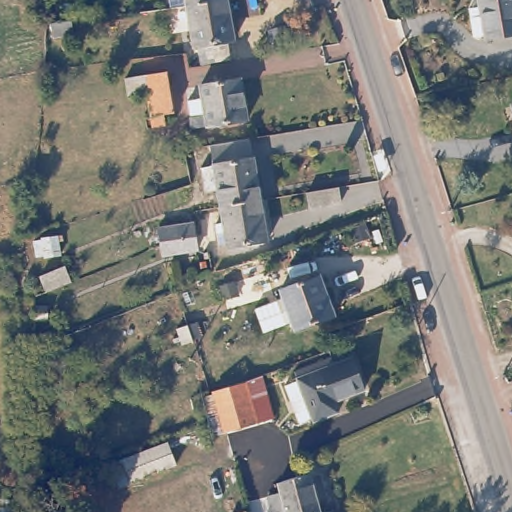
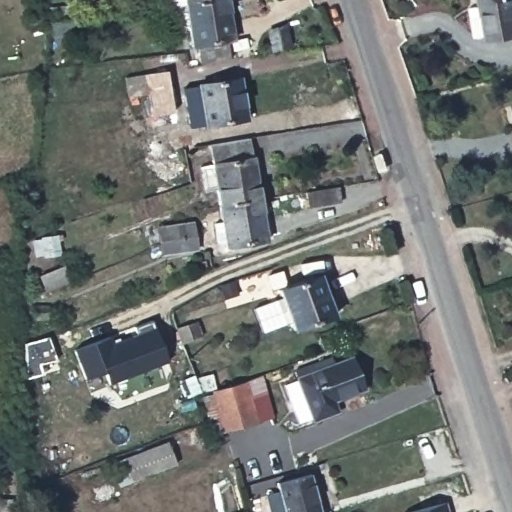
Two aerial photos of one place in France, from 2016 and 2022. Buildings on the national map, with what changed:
unchanged [(204,0),(184,3),(184,0),(204,0)]
unchanged [(192,47),(184,3),(204,0),(227,0),(234,39),(192,47)]
unchanged [(491,39),(491,35),(479,39),(473,10),(487,8),(486,3),(482,4),(482,0),(512,0),(512,35),(491,39)]
unchanged [(71,33),(50,35),(49,22),(69,20),(71,33)]
unchanged [(292,47),(271,51),(267,34),(288,30),(292,47)]
unchanged [(231,59),(200,64),(198,49),(228,43),(231,59)]
unchanged [(173,113),(163,114),(164,124),(153,126),(147,93),(128,96),(125,78),(166,70),(173,113)]
unchanged [(252,118),(198,128),(193,99),(207,96),(205,84),(245,78),(252,118)]
unchanged [(224,206),(221,189),(210,190),(206,166),(218,164),(215,144),(253,138),(255,158),(258,158),(265,199),(224,206)]
unchanged [(339,203),(309,208),(306,192),(337,186),(339,203)]
unchanged [(265,199),(273,240),(231,248),(231,243),(223,244),(219,223),(227,221),(224,206),(265,199)]
unchanged [(162,254),(160,245),(160,239),(158,228),(192,222),(195,234),(197,249),(162,254)]
unchanged [(60,254),(45,256),(44,254),(35,255),(33,241),(42,239),(42,237),(57,235),(60,254)]
unchanged [(72,282),(46,294),(39,277),(65,266),(72,282)]
unchanged [(339,320),(299,335),(296,327),(288,330),(279,305),(288,302),(284,294),(324,279),(339,320)]
unchanged [(48,319),(35,320),(34,305),(47,304),(48,319)]
new [(110,345),(136,334),(134,328),(151,321),(152,329),(154,328),(167,363),(109,385),(104,373),(85,379),(74,352),(108,338),(110,345)]
unchanged [(374,389),(344,401),(348,413),(323,422),(321,418),(309,423),(295,385),(307,380),(306,377),(318,371),(316,366),(340,357),(343,363),(361,355),(374,389)]
unchanged [(202,397),(214,393),(213,390),(242,380),(259,374),(271,417),(255,422),(226,431),(214,435),(202,397)]
unchanged [(176,464),(132,482),(124,459),(167,442),(176,464)]
unchanged [(267,495),(279,492),(276,483),(309,474),(320,512),(272,512),(267,495)]
unchanged [(11,512),(0,512),(0,499),(11,499),(11,512)]
new [(444,501),(448,512),(411,512),(444,501)]

